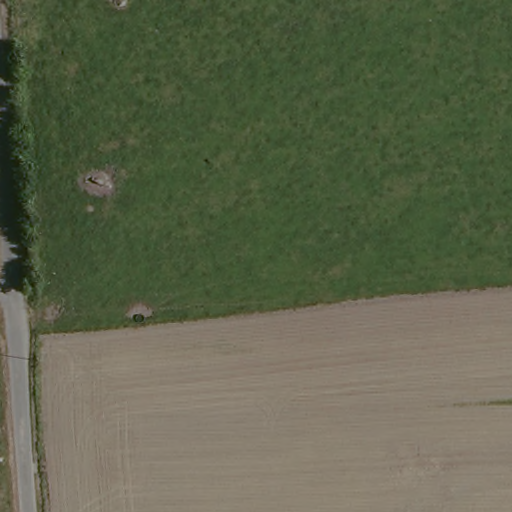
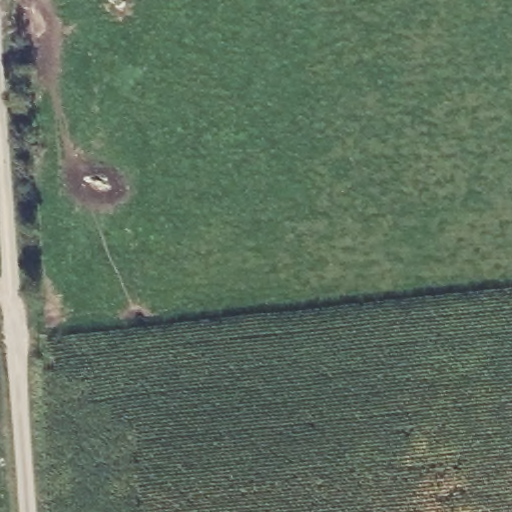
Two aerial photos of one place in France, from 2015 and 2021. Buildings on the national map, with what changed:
[]

